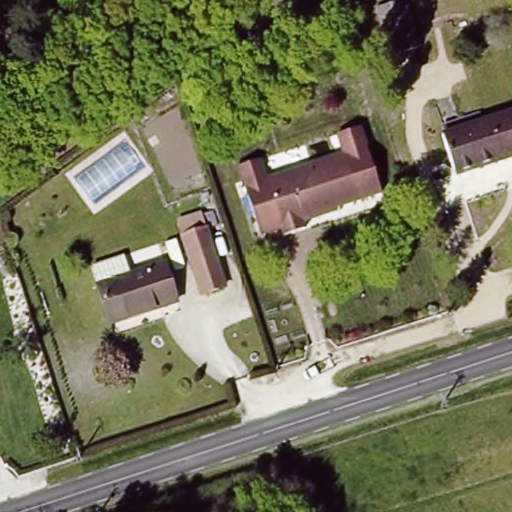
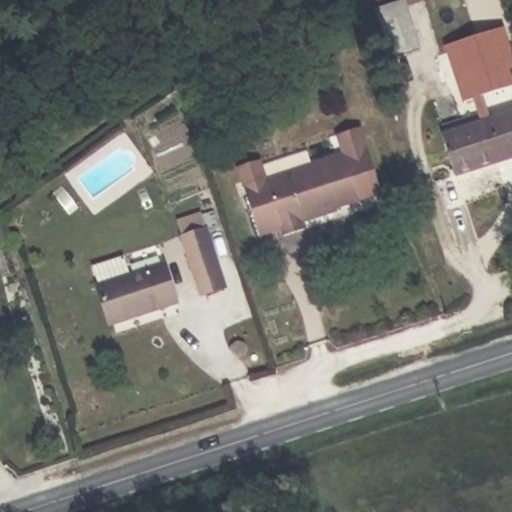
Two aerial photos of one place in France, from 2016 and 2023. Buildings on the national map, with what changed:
unchanged [(386,49),(371,6),(391,0),(404,0),(418,39),(386,49)]
new [(512,42),(512,82),(485,91),(480,93),(470,97),(451,41),(505,23),(512,42)]
unchanged [(512,155),(458,174),(445,135),(478,123),(512,112),(512,155)]
unchanged [(331,132),(354,125),(376,189),(353,196),(323,206),(325,209),(298,219),(301,225),(280,232),(278,225),(257,232),(241,185),(235,166),(256,159),(262,177),(306,161),(338,150),(331,132)]
unchanged [(203,295),(185,241),(180,229),(204,221),(208,232),(227,287),(203,295)]
unchanged [(177,305),(112,329),(98,292),(90,271),(119,261),(127,281),(164,268),(177,305)]

